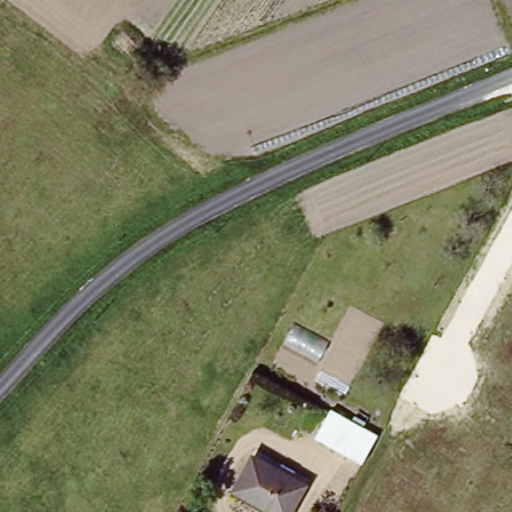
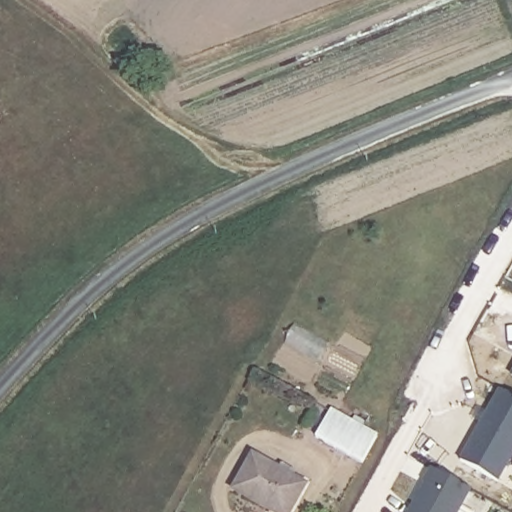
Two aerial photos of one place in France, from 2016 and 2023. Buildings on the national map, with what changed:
new [(502,387),(512,392),(512,454),(498,478),(461,457),(502,387)]
unchanged [(363,458),(320,433),(337,404),(380,428),(363,458)]
unchanged [(271,512),(232,490),(252,456),(305,486),(289,512),(271,512)]
new [(425,488),(436,469),(475,491),(463,512),(416,512),(428,490),(425,488)]

